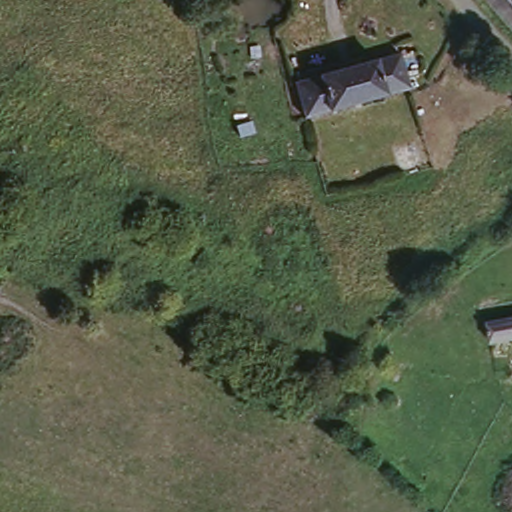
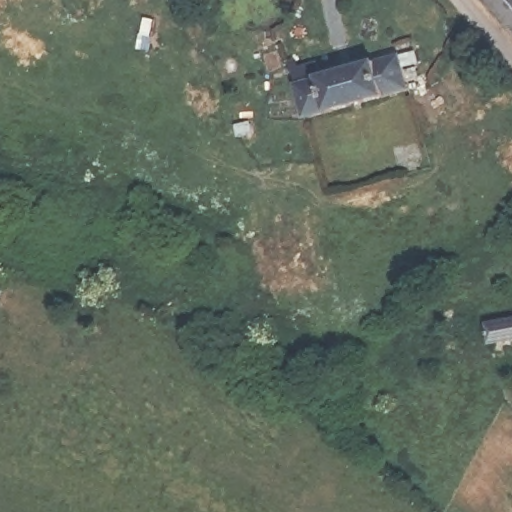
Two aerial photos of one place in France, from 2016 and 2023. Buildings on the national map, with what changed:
unchanged [(487,0),(512,0),(512,30),(487,0)]
unchanged [(297,77),(403,53),(409,87),(304,112),(297,77)]
unchanged [(227,117),(241,114),(242,126),(229,128),(227,117)]
unchanged [(485,326),(512,319),(512,341),(490,346),(485,326)]

